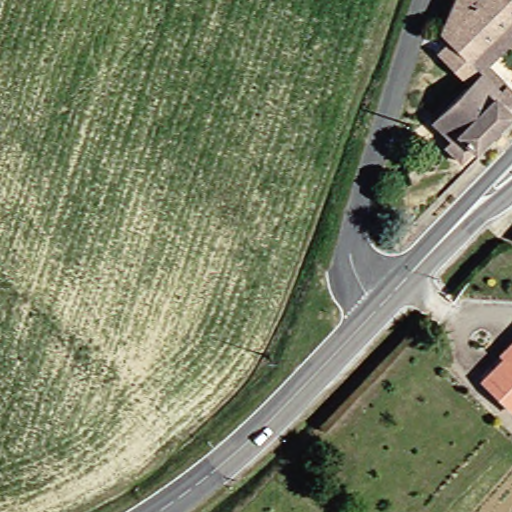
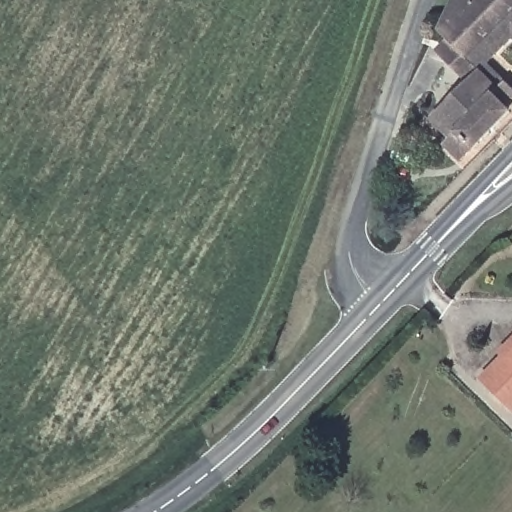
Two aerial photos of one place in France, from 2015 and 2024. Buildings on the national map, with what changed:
unchanged [(512,25),(484,54),(493,64),(475,82),(444,50),(451,42),(441,32),(459,0),(512,0),(512,25)]
unchanged [(493,64),(512,84),(512,117),(466,162),(450,145),(456,138),(438,118),(475,82),(493,64)]
unchanged [(507,354),(504,352),(512,345),(512,404),(486,376),(507,354)]

